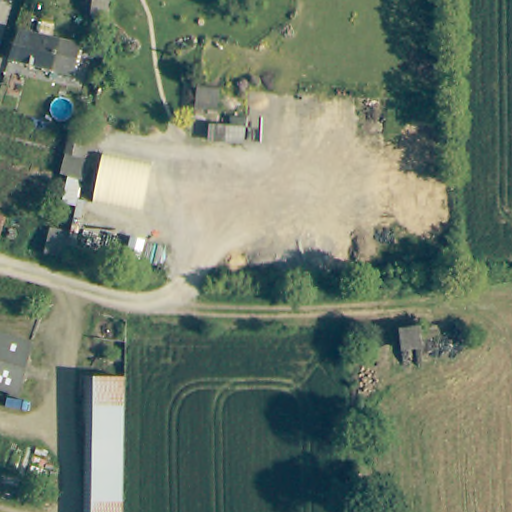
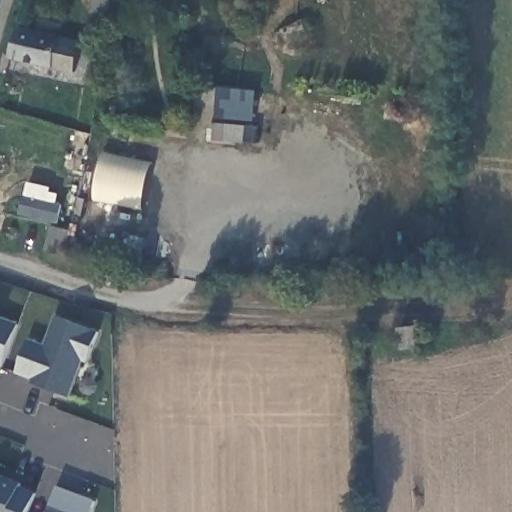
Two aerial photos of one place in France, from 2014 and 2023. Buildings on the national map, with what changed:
unchanged [(85,42),(76,76),(10,59),(21,27),(85,42)]
unchanged [(63,201),(69,176),(62,175),(67,152),(72,133),(94,137),(90,157),(85,179),(79,205),(63,201)]
unchanged [(153,161),(142,211),(94,201),(105,151),(153,161)]
unchanged [(9,219),(4,241),(0,240),(0,217),(9,219)]
unchanged [(74,228),(65,258),(47,252),(46,252),(54,225),(74,228)]
new [(90,351),(85,350),(70,387),(33,374),(35,369),(19,363),(31,330),(47,336),(59,307),(101,322),(90,351)]
new [(20,316),(5,359),(0,357),(0,309),(20,316)]
new [(0,474),(0,471),(4,472),(3,475),(0,474)]
new [(3,475),(5,471),(22,478),(21,482),(37,488),(29,512),(0,512),(0,474),(3,475)]
new [(89,512),(47,512),(59,479),(96,493),(89,512)]

